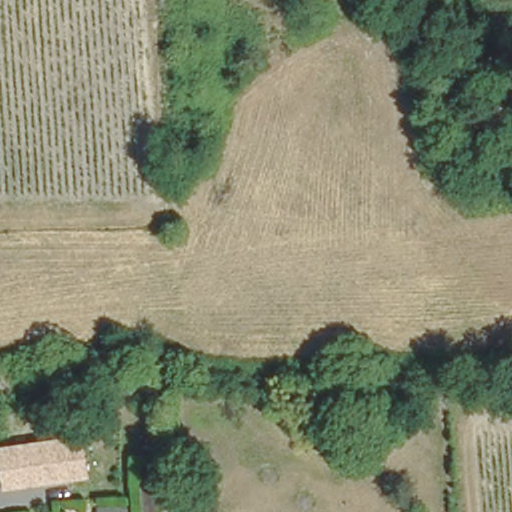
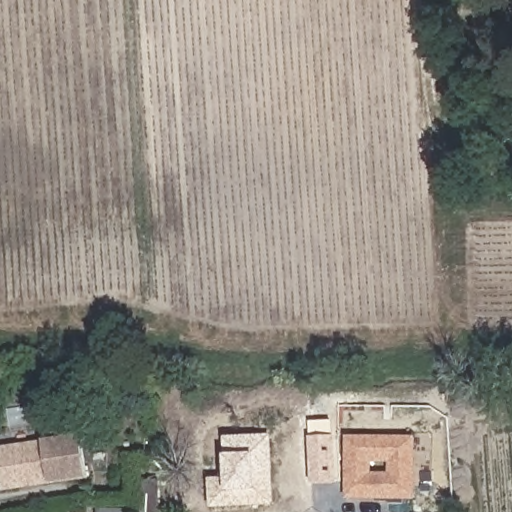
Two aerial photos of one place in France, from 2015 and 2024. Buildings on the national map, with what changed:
new [(309,437),(311,437),(310,421),(333,420),(334,436),(336,436),(338,483),(313,485),(309,437)]
unchanged [(90,480),(3,493),(0,463),(0,448),(83,435),(90,480)]
unchanged [(176,436),(197,435),(197,470),(175,471),(176,436)]
new [(209,478),(225,479),(225,456),(227,455),(224,437),(272,435),(275,506),(210,508),(209,478)]
new [(347,437),(417,437),(416,500),(346,500),(347,437)]
unchanged [(125,498),(153,497),(160,497),(161,512),(119,512),(119,498),(125,498)]

